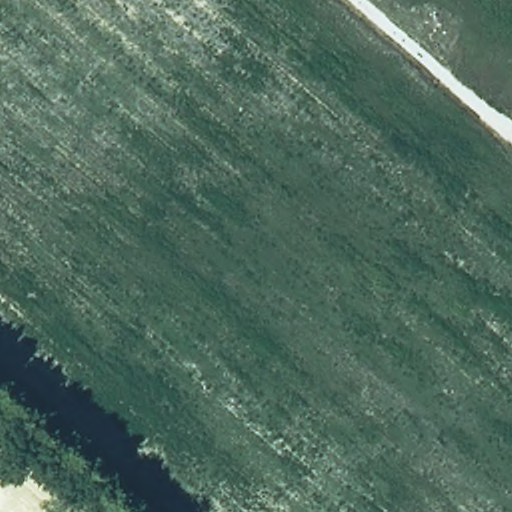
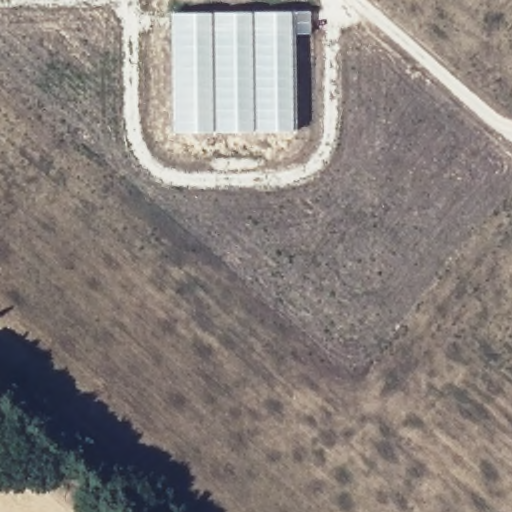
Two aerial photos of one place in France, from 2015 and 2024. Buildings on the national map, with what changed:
new [(174,11),(296,10),(313,11),(313,33),(296,34),(298,130),(175,132),(174,11)]

